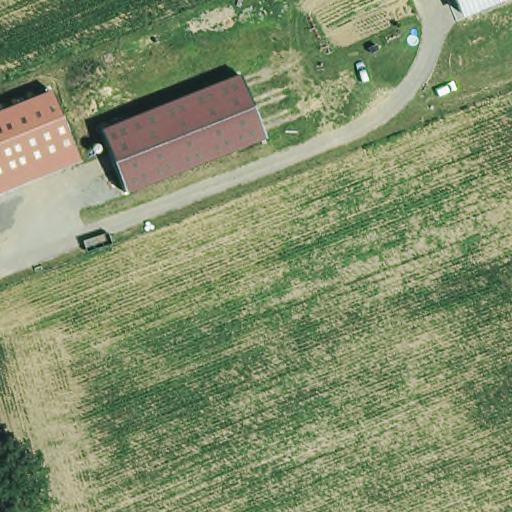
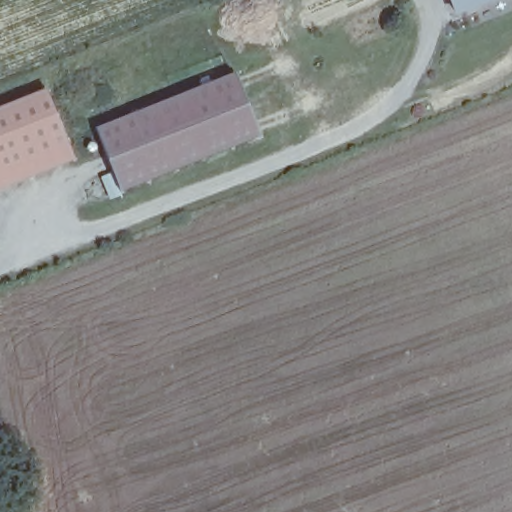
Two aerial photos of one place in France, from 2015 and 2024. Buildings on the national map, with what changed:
unchanged [(449,0),(497,0),(456,16),(449,0)]
unchanged [(125,195),(99,127),(240,72),(264,140),(125,195)]
unchanged [(0,191),(0,107),(47,88),(77,160),(0,191)]

